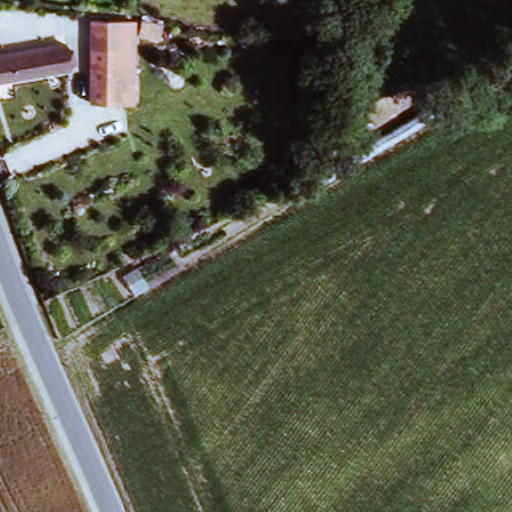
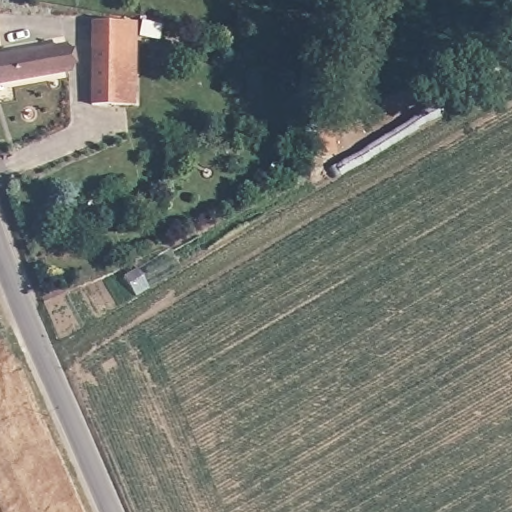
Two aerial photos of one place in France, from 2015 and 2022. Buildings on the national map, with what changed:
unchanged [(122,104),(92,105),(91,53),(115,52),(113,26),(161,24),(163,42),(141,44),(143,52),(118,56),(122,67),(122,104)]
unchanged [(60,72),(0,81),(0,50),(55,44),(70,42),(74,71),(60,72)]

